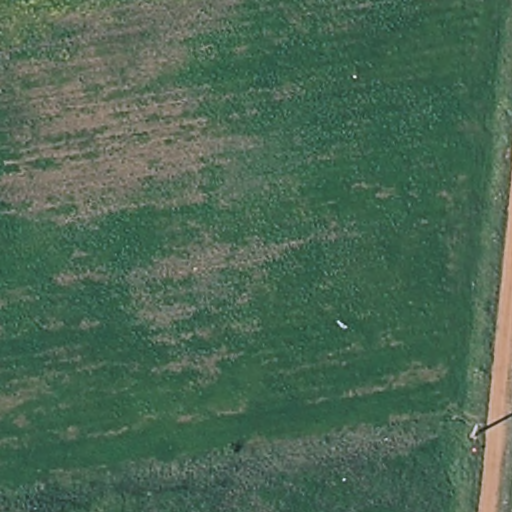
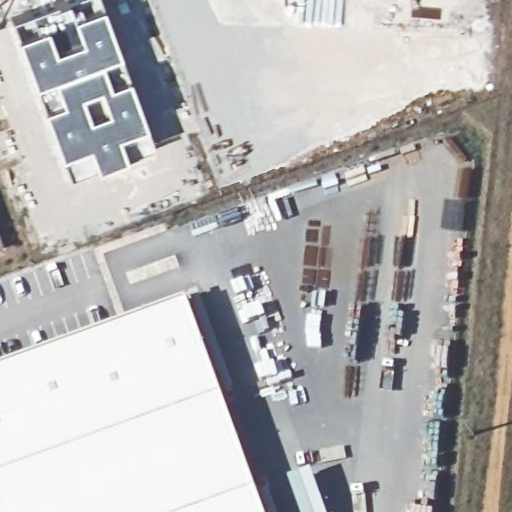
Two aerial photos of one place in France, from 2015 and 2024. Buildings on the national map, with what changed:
new [(125,154),(97,165),(69,176),(61,152),(17,34),(9,16),(52,0),(101,0),(102,2),(145,122),(153,145),(125,154)]
new [(6,250),(0,252),(0,235),(6,250)]
new [(0,512),(0,367),(189,297),(266,512),(0,512)]

